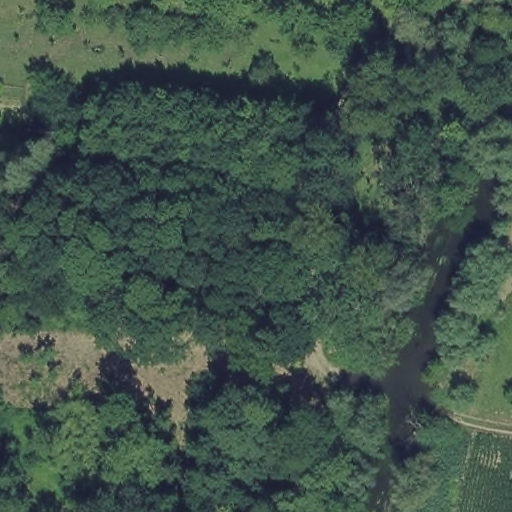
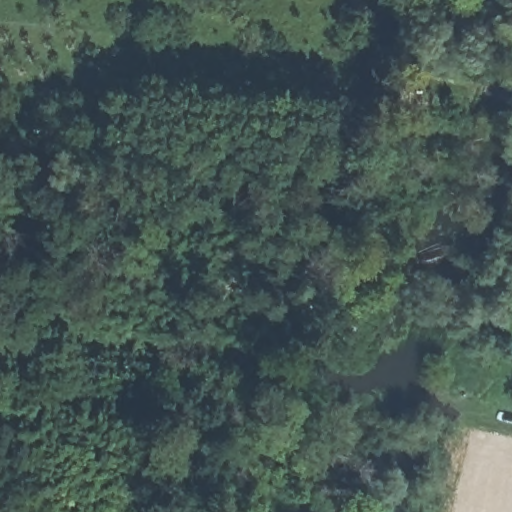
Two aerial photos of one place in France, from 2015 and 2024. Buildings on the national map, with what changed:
unchanged [(25,137),(27,118),(79,123),(78,141),(25,137)]

